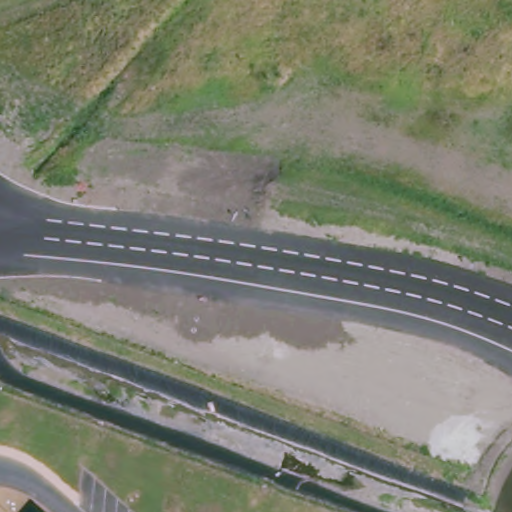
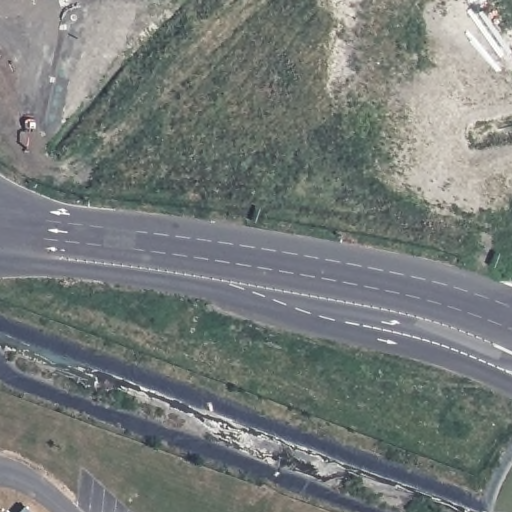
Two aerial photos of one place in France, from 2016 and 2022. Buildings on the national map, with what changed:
[]

